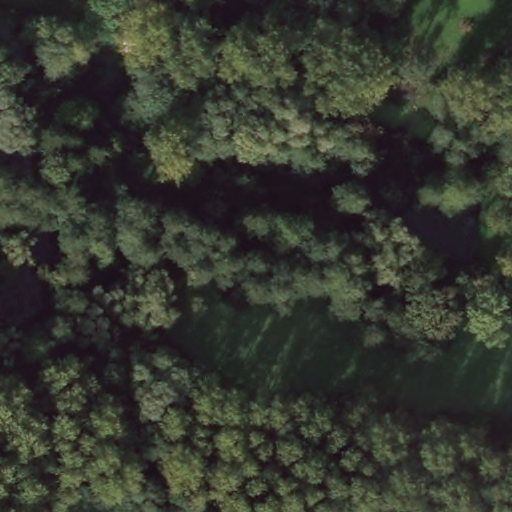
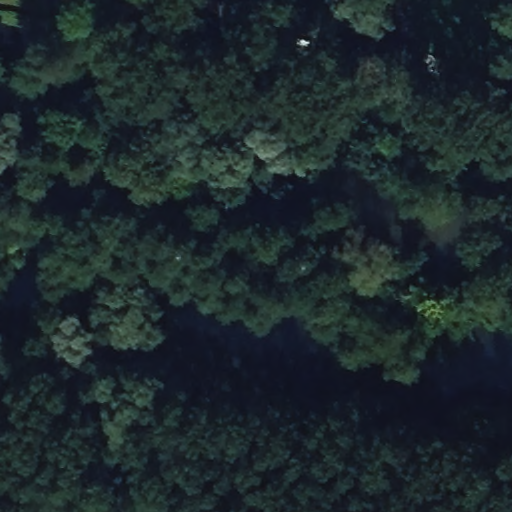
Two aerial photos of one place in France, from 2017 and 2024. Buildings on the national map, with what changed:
unchanged [(137,62),(112,54),(118,29),(145,36),(137,62)]

